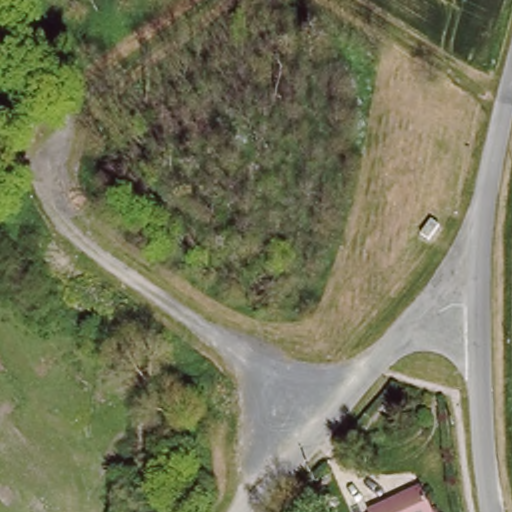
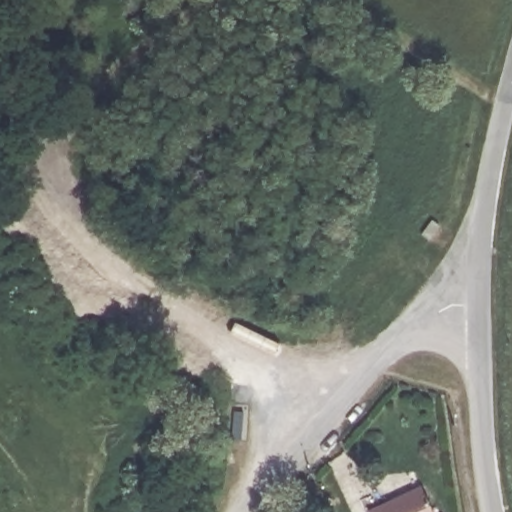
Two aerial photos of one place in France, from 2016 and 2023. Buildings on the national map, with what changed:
unchanged [(394,507),(423,494),(432,512),(370,512),(392,502),(394,507)]

